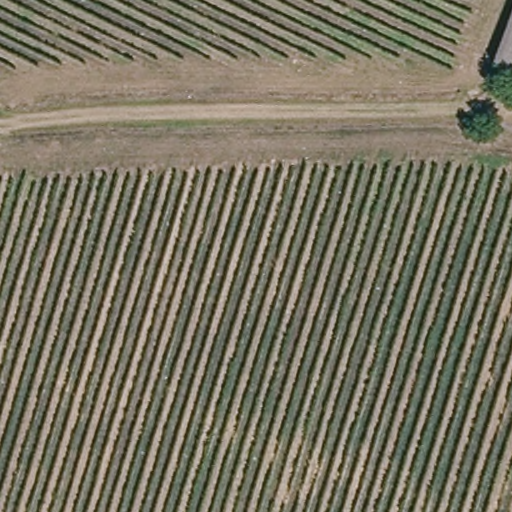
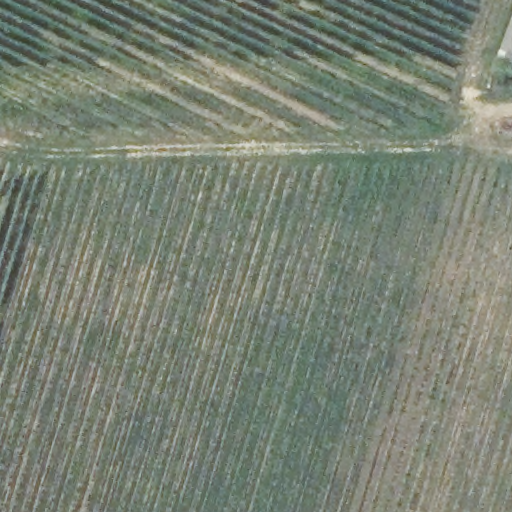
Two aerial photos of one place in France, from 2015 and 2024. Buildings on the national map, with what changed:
unchanged [(512,31),(512,66),(501,62),(512,31)]

